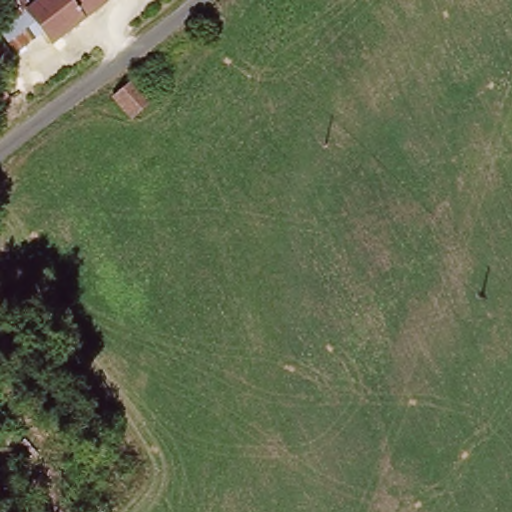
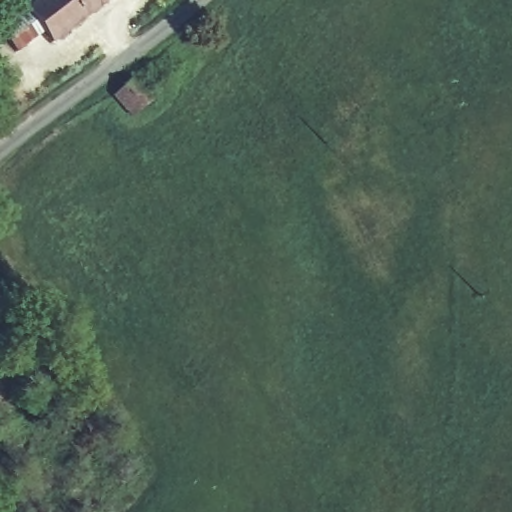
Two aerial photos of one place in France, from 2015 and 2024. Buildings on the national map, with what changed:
unchanged [(0,31),(6,26),(0,19),(0,8),(9,0),(22,0),(30,9),(40,0),(106,0),(49,47),(37,32),(10,56),(0,44),(0,31)]
unchanged [(148,100),(128,116),(111,97),(130,80),(148,100)]
unchanged [(0,114),(0,99),(7,107),(0,114)]

